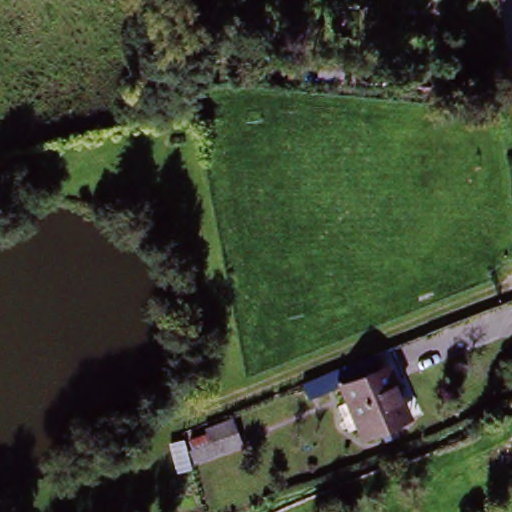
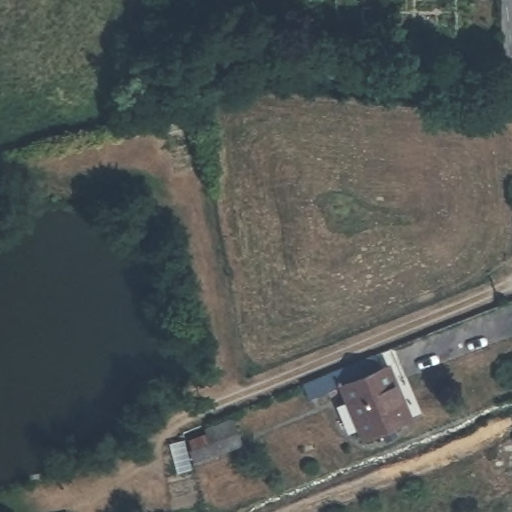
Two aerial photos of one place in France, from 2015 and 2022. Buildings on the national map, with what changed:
unchanged [(366,442),(348,397),(314,412),(308,397),(345,382),(382,367),(387,377),(394,376),(400,392),(394,396),(406,428),(366,442)]
unchanged [(203,454),(198,442),(216,433),(211,425),(239,413),(249,436),(203,454)]
unchanged [(506,432),(512,429),(512,443),(506,432)]

